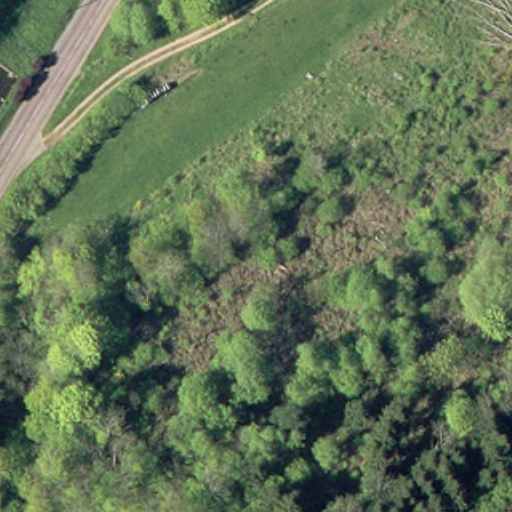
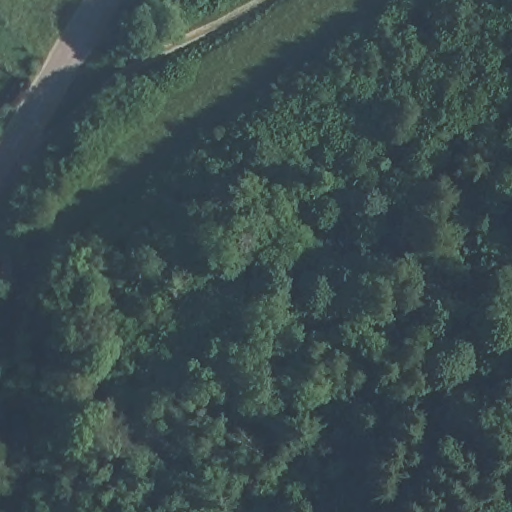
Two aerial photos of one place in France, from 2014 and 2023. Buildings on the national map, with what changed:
unchanged [(190,17),(164,0),(201,0),(190,17)]

